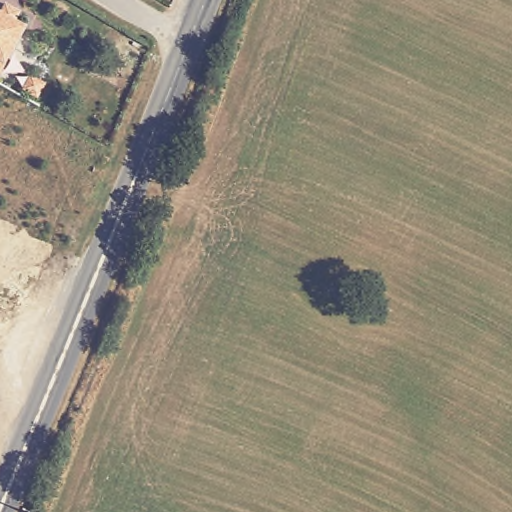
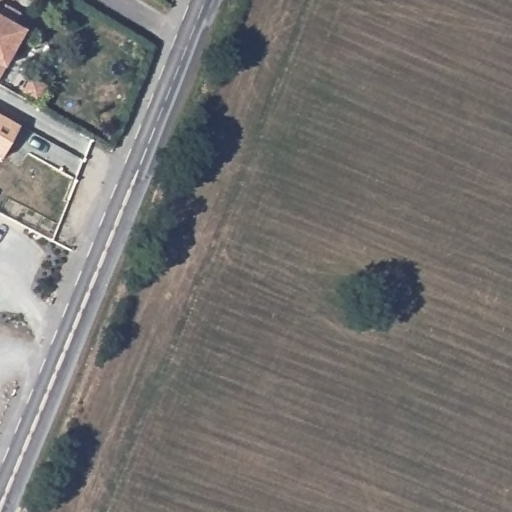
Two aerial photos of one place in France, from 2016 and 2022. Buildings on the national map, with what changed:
unchanged [(22,12),(16,23),(25,27),(0,72),(0,15),(6,3),(22,12)]
new [(2,157),(0,156),(0,112),(20,124),(2,157)]

